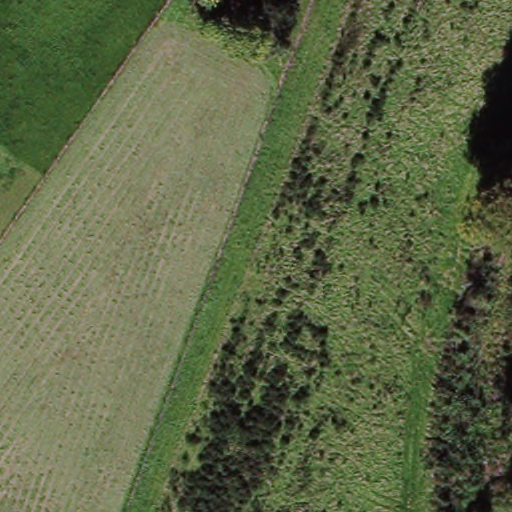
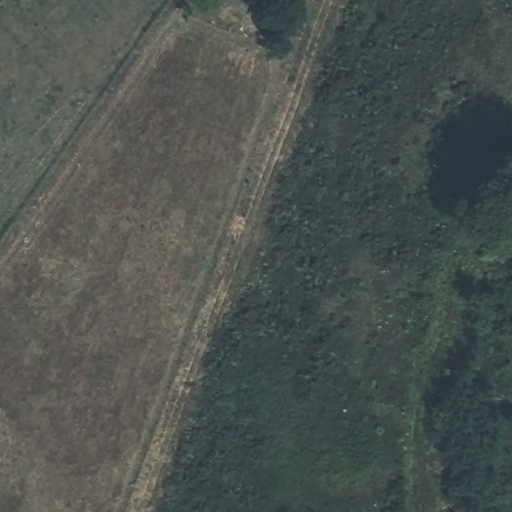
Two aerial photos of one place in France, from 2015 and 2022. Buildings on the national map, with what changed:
[]

